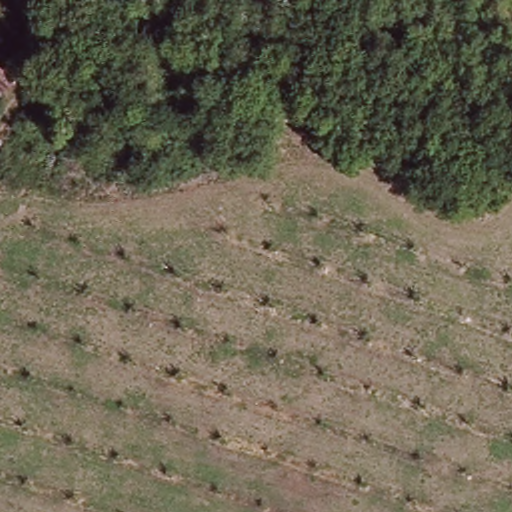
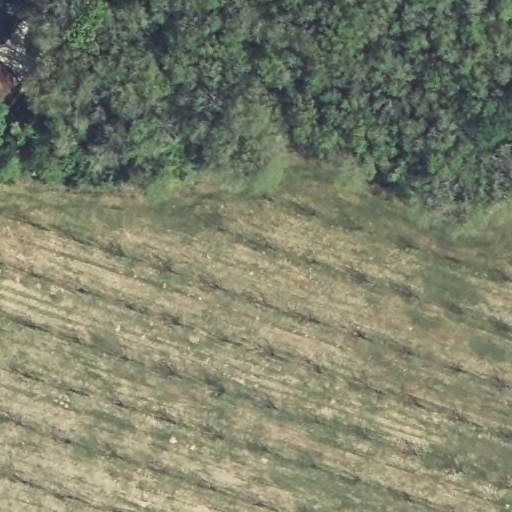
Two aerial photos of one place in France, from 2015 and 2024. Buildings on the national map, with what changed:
unchanged [(0,100),(0,68),(15,80),(0,100)]

